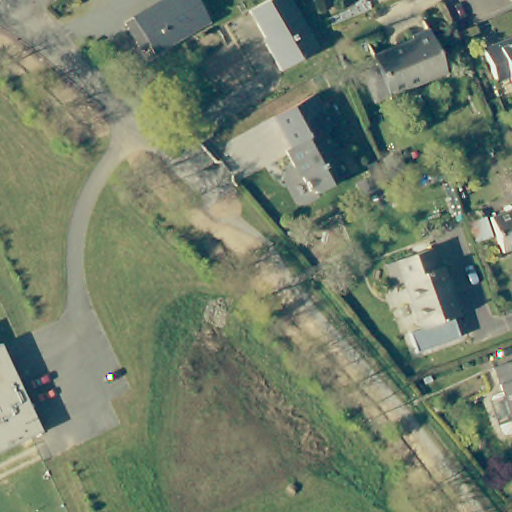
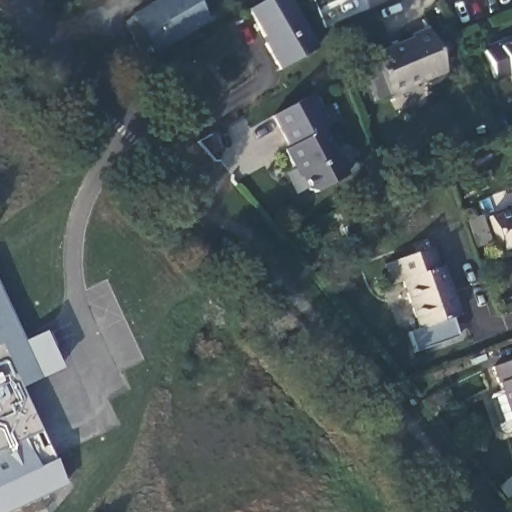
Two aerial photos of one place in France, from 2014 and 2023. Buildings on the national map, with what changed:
unchanged [(197,0),(212,23),(156,56),(152,49),(144,53),(136,41),(128,25),(135,21),(171,0),(197,0)]
unchanged [(289,0),(316,46),(279,68),(264,42),(267,41),(247,8),(262,0),(289,0)]
unchanged [(446,76),(408,91),(409,94),(391,103),(389,101),(376,107),(363,76),(377,71),(372,59),(411,42),(410,40),(427,33),(446,76)]
unchanged [(509,75),(496,81),(482,48),(496,42),(498,47),(512,41),(512,81),(509,75)]
unchanged [(318,199),(312,197),(299,174),(298,175),(288,157),(292,154),(275,124),(273,120),(303,104),(304,108),(312,121),(319,117),(329,134),(320,138),(345,184),(318,199)]
unchanged [(512,212),(512,252),(497,257),(484,221),(512,212)]
unchanged [(441,266),(443,265),(461,315),(454,317),(461,335),(417,350),(411,332),(421,328),(404,281),(393,285),(386,263),(433,247),(441,266)]
new [(0,344),(0,282),(25,340),(44,331),(61,366),(20,387),(0,344)]
unchanged [(41,432),(0,452),(0,344),(36,422),(41,432)]
unchanged [(499,436),(488,404),(491,399),(502,395),(493,371),(512,365),(512,437),(505,439),(499,436)]
new [(67,487),(10,512),(0,512),(0,452),(41,432),(67,487)]

